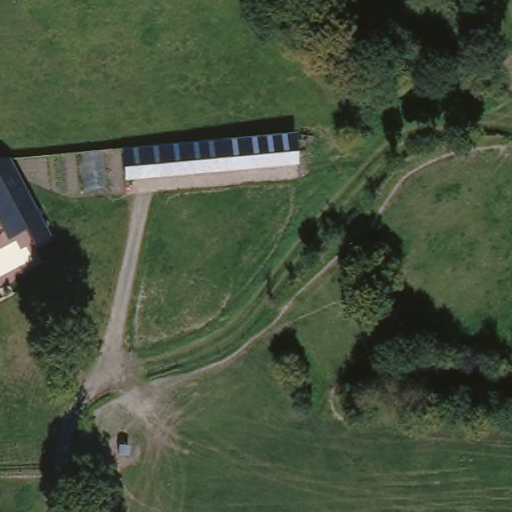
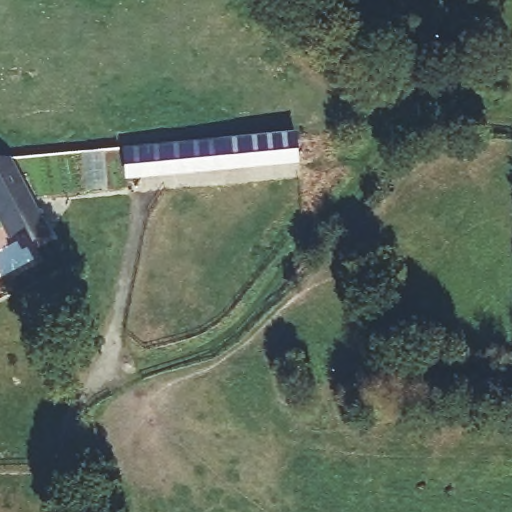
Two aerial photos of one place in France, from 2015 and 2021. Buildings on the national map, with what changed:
unchanged [(122,145),(219,137),(223,166),(123,175),(122,145)]
unchanged [(53,231),(15,249),(0,221),(0,157),(9,152),(53,231)]

